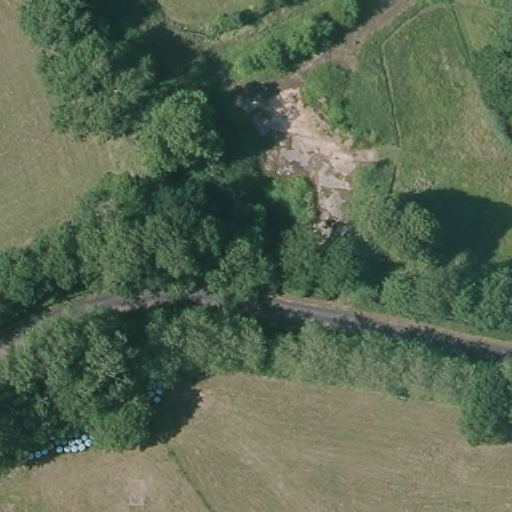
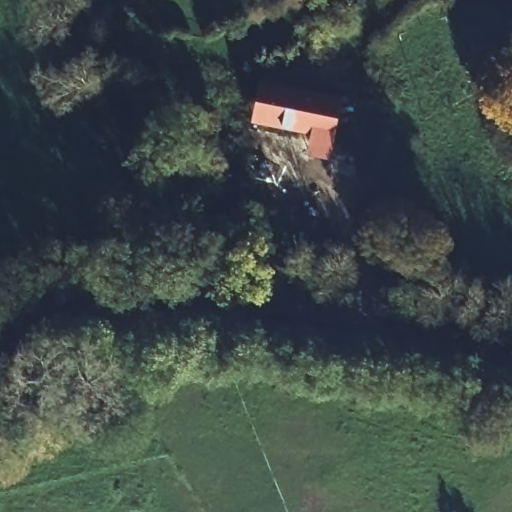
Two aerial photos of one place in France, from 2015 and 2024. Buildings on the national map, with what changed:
new [(251,123),(259,80),(344,96),(329,160),(307,155),(311,134),(251,123)]

